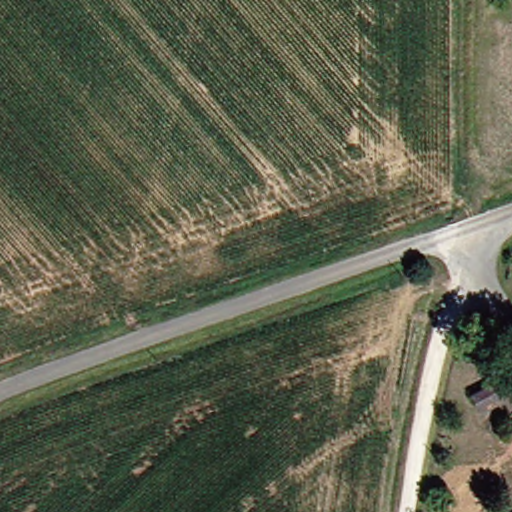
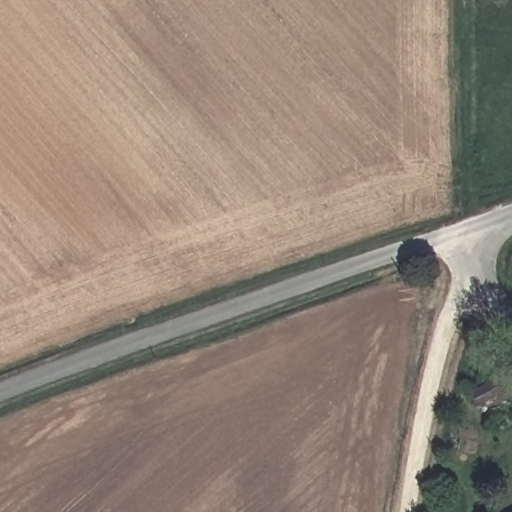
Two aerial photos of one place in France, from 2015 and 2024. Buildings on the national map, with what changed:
unchanged [(462,394),(488,380),(495,395),(470,410),(462,394)]

